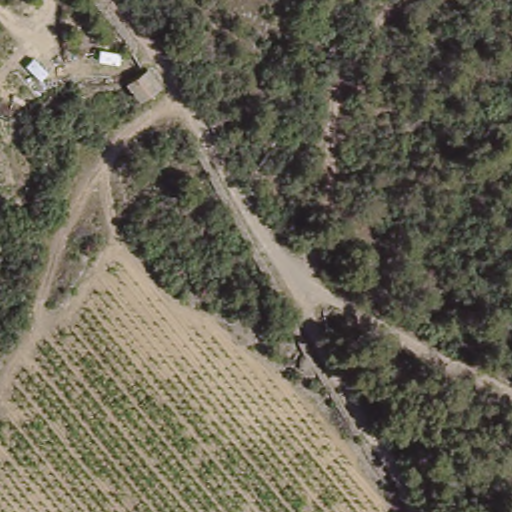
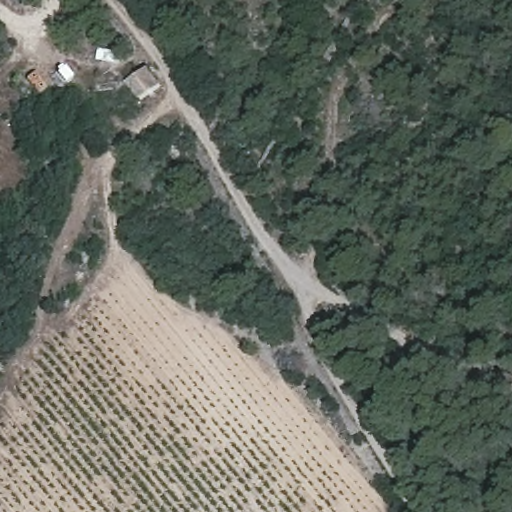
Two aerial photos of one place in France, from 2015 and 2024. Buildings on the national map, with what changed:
unchanged [(162,87),(148,100),(132,85),(150,69),(162,87)]

